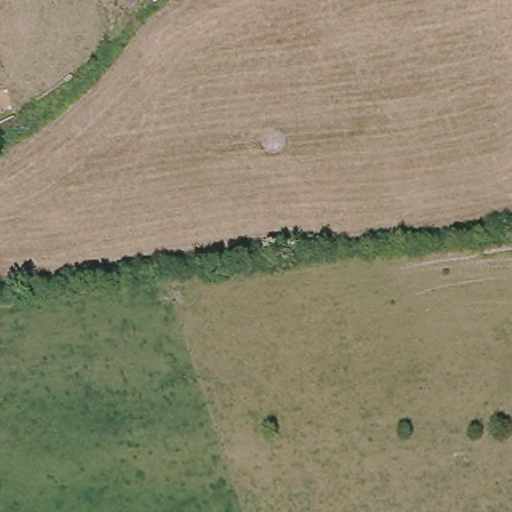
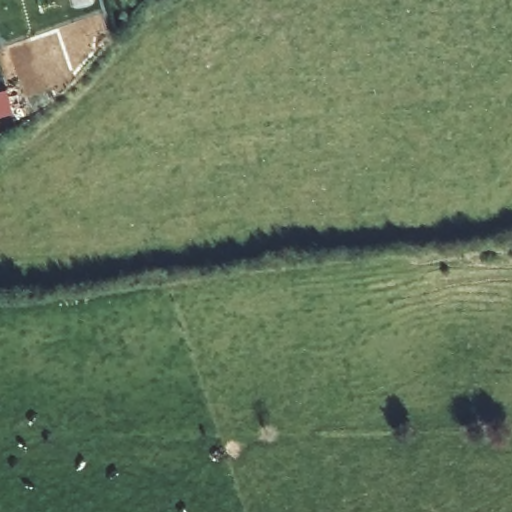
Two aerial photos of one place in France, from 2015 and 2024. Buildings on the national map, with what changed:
new [(14,114),(0,118),(0,93),(8,90),(14,114)]

